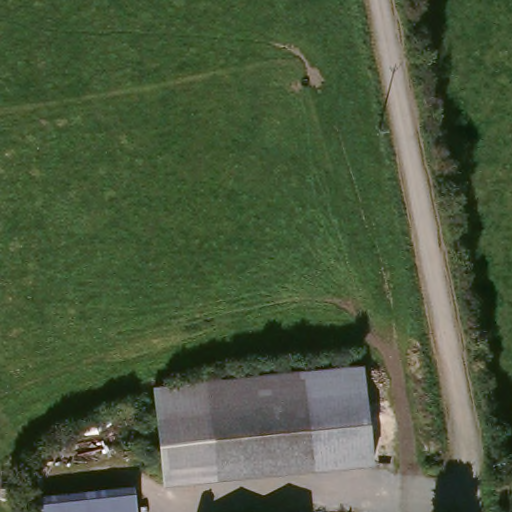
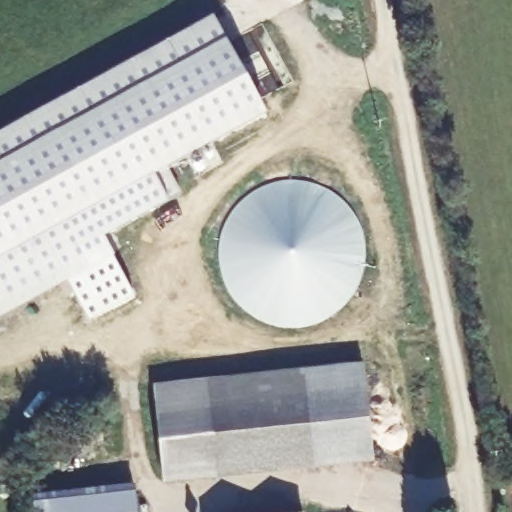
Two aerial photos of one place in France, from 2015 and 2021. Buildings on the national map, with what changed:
new [(0,133),(214,17),(226,42),(266,117),(168,170),(183,195),(168,204),(105,239),(115,257),(0,318),(0,133)]
unchanged [(371,467),(163,487),(153,388),(361,368),(371,467)]
unchanged [(139,512),(36,512),(35,503),(137,493),(139,512)]

